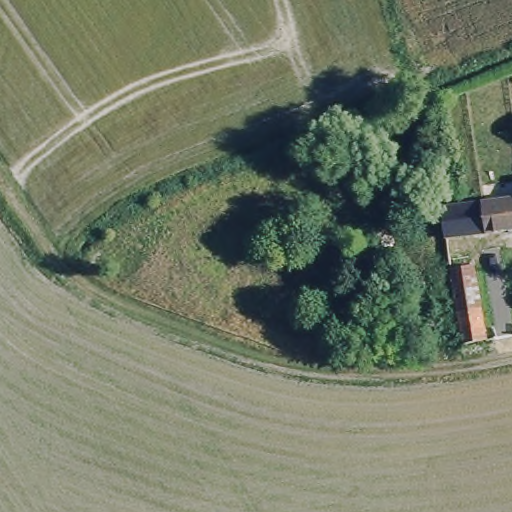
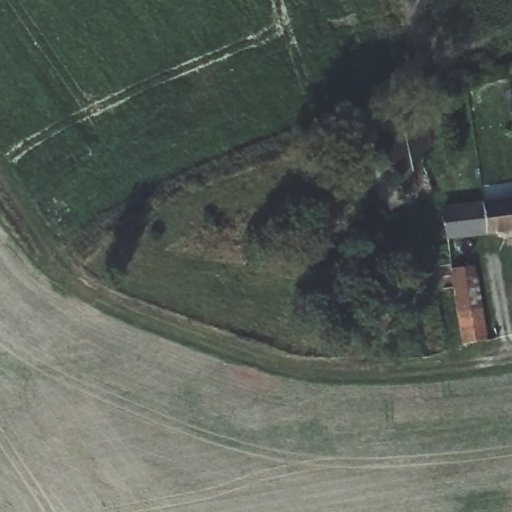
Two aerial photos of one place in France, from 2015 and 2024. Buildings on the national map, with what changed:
unchanged [(450,234),(445,205),(496,200),(495,190),(506,190),(506,198),(512,198),(512,226),(450,234)]
unchanged [(485,342),(460,346),(446,269),(471,265),(485,342)]
unchanged [(512,318),(512,337),(492,341),(489,322),(512,318)]

